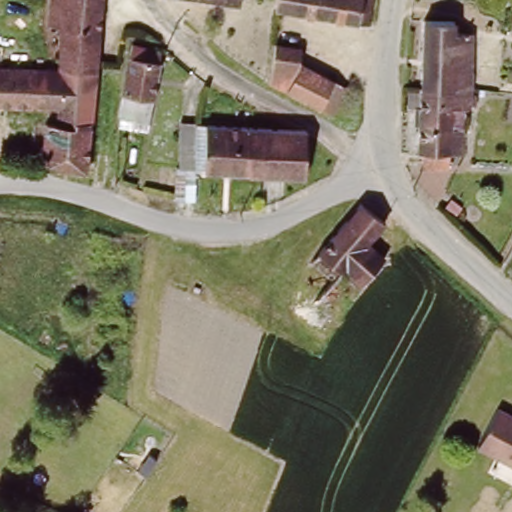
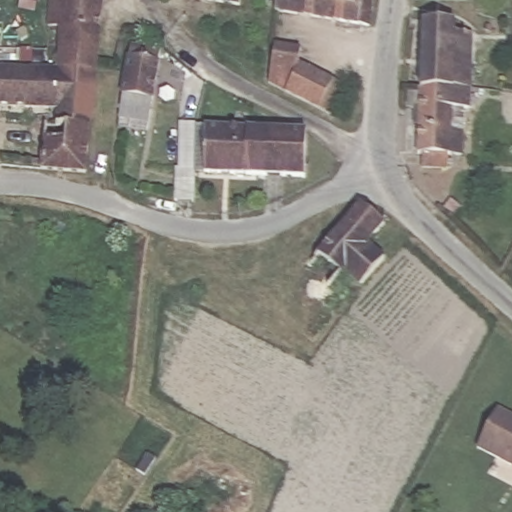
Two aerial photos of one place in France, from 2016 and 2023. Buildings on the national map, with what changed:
unchanged [(58,65),(60,27),(48,27),(51,0),(103,0),(97,70),(58,65)]
unchanged [(201,0),(242,0),(241,6),(201,0)]
unchanged [(277,0),(373,0),(370,27),(275,11),(277,0)]
unchanged [(421,87),(423,22),(453,22),(453,33),(471,34),(470,90),(421,87)]
unchanged [(125,132),(125,134),(118,134),(120,122),(132,49),(161,58),(158,71),(160,71),(150,128),(148,128),(147,135),(125,132)]
unchanged [(270,89),(276,51),(303,56),(301,70),(334,87),(346,94),(332,120),(331,120),(320,115),(270,89)]
unchanged [(86,172),(41,169),(45,124),(55,125),(57,109),(0,106),(0,69),(58,70),(58,65),(97,70),(86,172)]
unchanged [(506,67),(512,67),(512,84),(504,83),(506,67)]
unchanged [(469,110),(452,109),(451,125),(457,125),(457,132),(463,133),(462,155),(449,155),(448,167),(421,167),(421,154),(417,153),(419,124),(414,124),(415,107),(420,107),(421,87),(470,90),(469,110)]
unchanged [(206,125),(222,124),(220,201),(200,201),(201,168),(208,169),(208,147),(204,147),(205,129),(206,125)]
unchanged [(229,172),(231,126),(303,130),(301,174),(229,172)]
unchanged [(385,224),(370,245),(383,257),(363,282),(346,267),(340,276),(315,252),(357,204),(385,224)]
unchanged [(500,409),(512,415),(512,463),(480,447),(500,409)]

